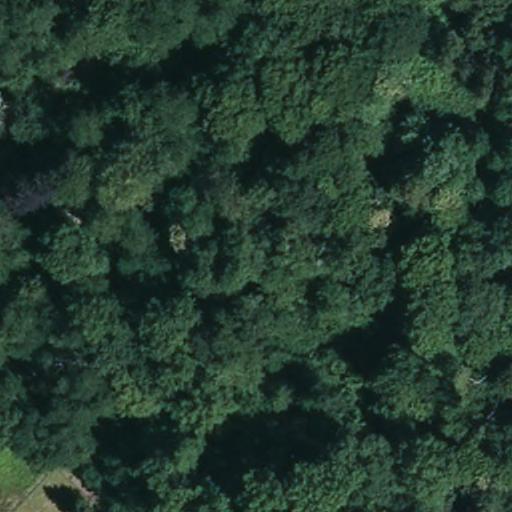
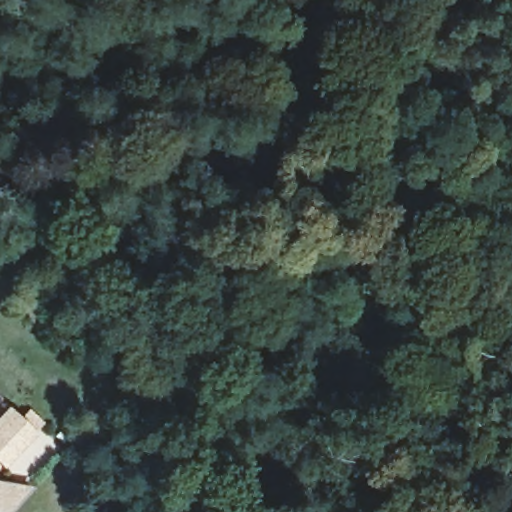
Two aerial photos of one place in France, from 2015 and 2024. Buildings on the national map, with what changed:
new [(29,408),(44,422),(36,431),(37,433),(4,469),(0,465),(0,416),(9,406),(20,416),(29,408)]
new [(11,512),(0,512),(0,481),(32,486),(11,512)]

